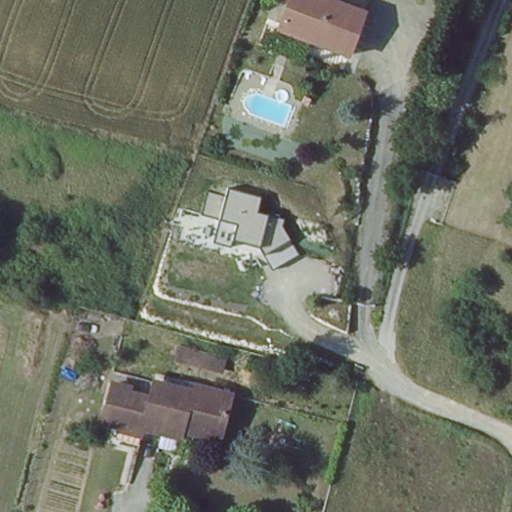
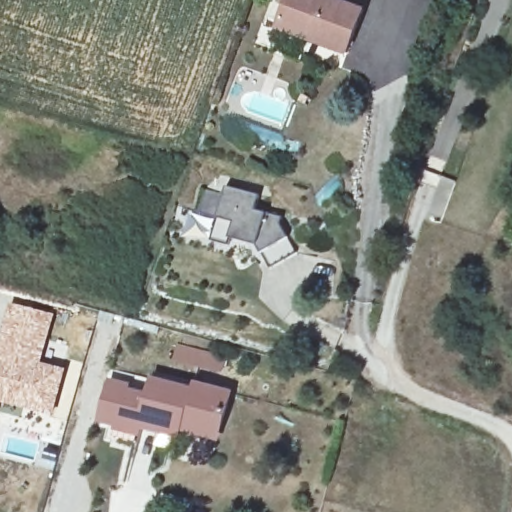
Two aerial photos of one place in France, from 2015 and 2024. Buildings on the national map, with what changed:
unchanged [(286,0),(328,0),(362,12),(346,56),(306,41),(276,30),(278,24),(286,0)]
unchanged [(270,269),(261,252),(258,247),(233,241),(231,247),(213,244),(218,219),(201,215),(208,193),(228,197),(230,190),(261,197),(258,214),(270,217),(284,221),(284,227),(290,240),(296,254),(270,269)]
new [(53,312),(41,361),(66,367),(55,416),(0,402),(0,404),(0,331),(8,302),(53,312)]
unchanged [(222,357),(220,372),(174,362),(178,345),(222,357)]
unchanged [(219,441),(185,432),(180,440),(142,430),(138,443),(113,438),(113,428),(99,422),(110,381),(148,388),(156,374),(230,392),(219,441)]

